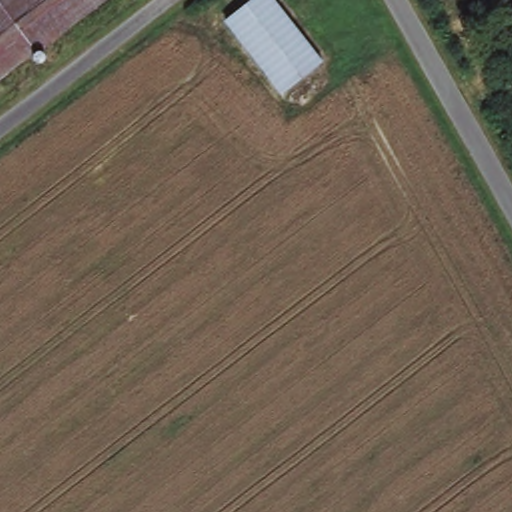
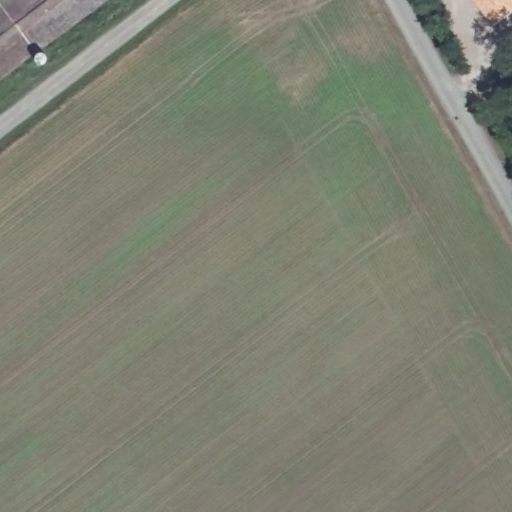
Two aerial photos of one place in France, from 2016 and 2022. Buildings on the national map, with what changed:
unchanged [(9,0),(97,0),(0,74),(0,7),(3,4),(9,0)]
demolished [(249,0),(274,0),(322,63),(279,95),(222,22),(249,0)]
new [(491,27),(470,0),(512,0),(512,12),(491,27)]

